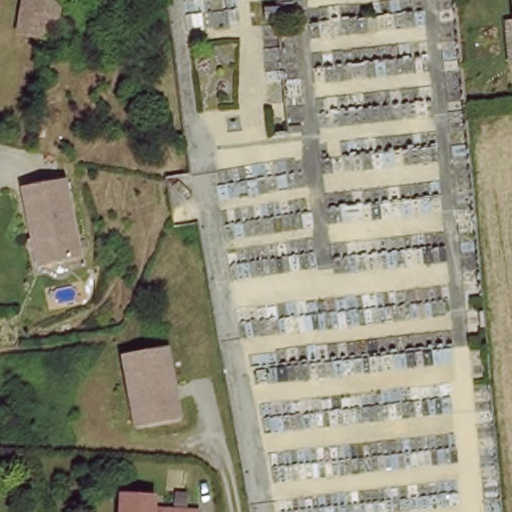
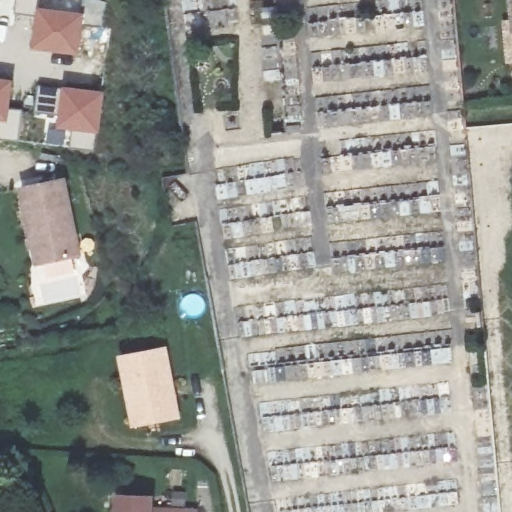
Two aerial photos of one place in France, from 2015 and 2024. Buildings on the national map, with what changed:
new [(79,55),(30,49),(35,14),(13,11),(14,0),(38,0),(37,6),(85,12),(79,55)]
demolished [(62,34),(53,32),(50,45),(26,41),(32,0),(67,0),(62,34)]
new [(11,109),(10,120),(10,123),(0,122),(0,76),(14,78),(11,109)]
new [(55,119),(34,116),(38,84),(59,86),(104,91),(94,151),(43,145),(47,126),(53,127),(55,119)]
unchanged [(66,180),(80,256),(37,263),(23,187),(66,180)]
unchanged [(167,356),(176,425),(137,430),(133,408),(128,409),(122,362),(167,356)]
unchanged [(153,497),(153,510),(165,511),(197,512),(120,512),(120,496),(153,497)]

